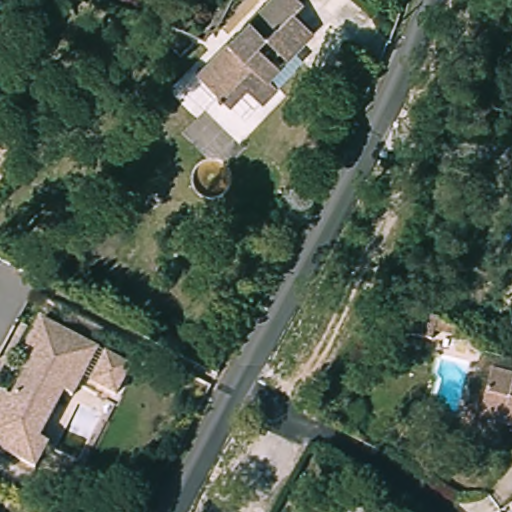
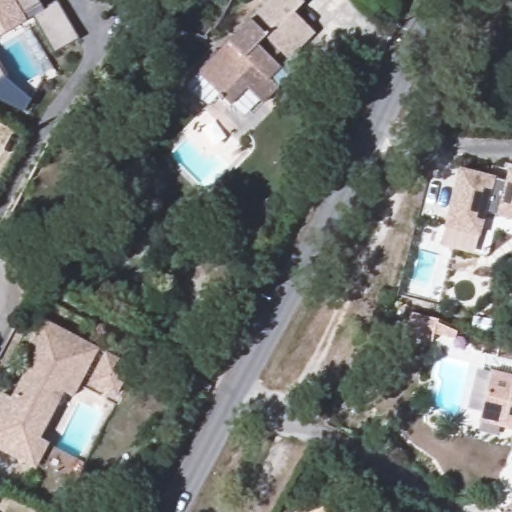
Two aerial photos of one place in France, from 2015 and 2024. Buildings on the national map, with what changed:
new [(40,3),(44,10),(56,2),(79,40),(54,55),(33,17),(28,21),(0,38),(0,0),(37,0),(39,4),(40,3)]
unchanged [(274,91),(257,107),(241,91),(230,102),(213,85),(198,70),(270,0),(305,0),(306,1),(290,17),(310,37),(290,57),(299,66),(274,91)]
new [(31,100),(24,114),(0,103),(0,69),(5,79),(31,100)]
new [(496,177),(496,180),(504,182),(508,170),(512,171),(512,221),(496,217),(496,215),(485,212),(479,236),(478,236),(473,256),(441,247),(447,228),(444,228),(460,169),(496,177)]
unchanged [(412,313),(439,321),(438,325),(458,331),(456,340),(435,334),(433,343),(406,336),(412,313)]
unchanged [(57,388),(30,434),(33,452),(43,458),(38,471),(0,448),(0,432),(6,421),(0,417),(0,406),(5,395),(15,401),(39,356),(29,348),(45,322),(100,352),(86,380),(77,375),(57,388)]
unchanged [(134,370),(120,398),(95,383),(109,356),(134,370)]
unchanged [(512,373),(512,431),(480,421),(498,368),(512,373)]
unchanged [(77,400),(66,393),(60,402),(40,441),(49,447),(43,458),(33,452),(30,434),(57,388),(77,375),(86,380),(77,400)]
unchanged [(509,509),(512,507),(512,512),(511,512),(509,509)]

